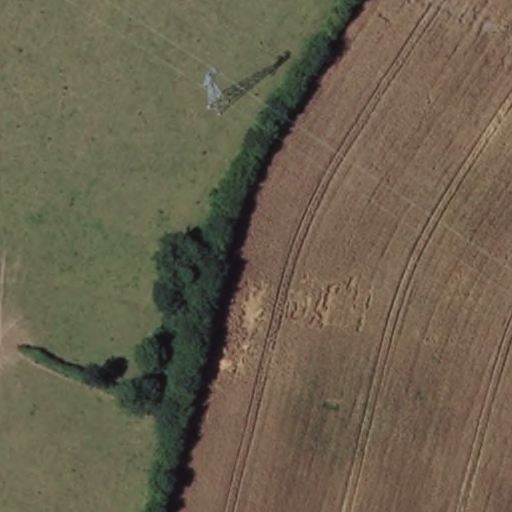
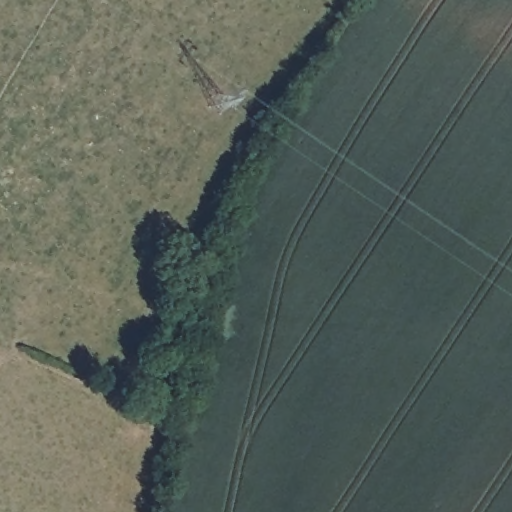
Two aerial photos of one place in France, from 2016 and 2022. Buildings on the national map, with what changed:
[]

